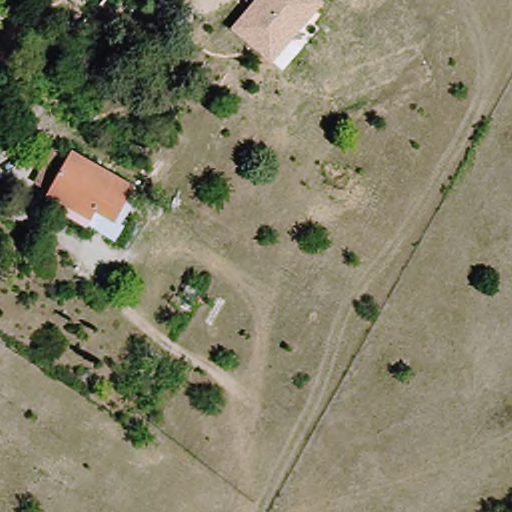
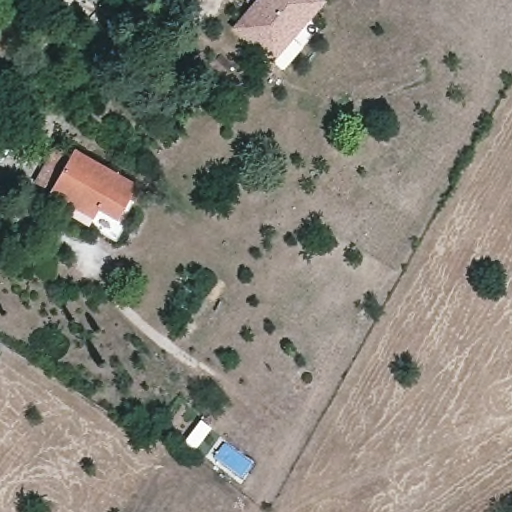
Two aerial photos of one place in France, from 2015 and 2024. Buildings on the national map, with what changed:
unchanged [(231,27),(255,0),(323,0),(325,2),(272,62),(231,27)]
unchanged [(133,179),(113,212),(127,220),(113,241),(65,206),(53,177),(75,140),(133,179)]

